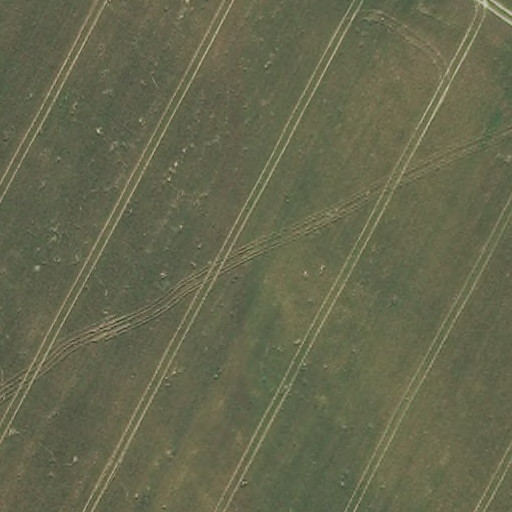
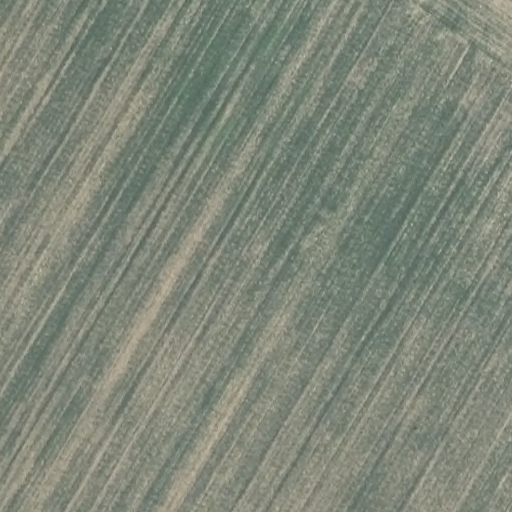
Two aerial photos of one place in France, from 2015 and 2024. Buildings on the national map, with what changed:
[]

